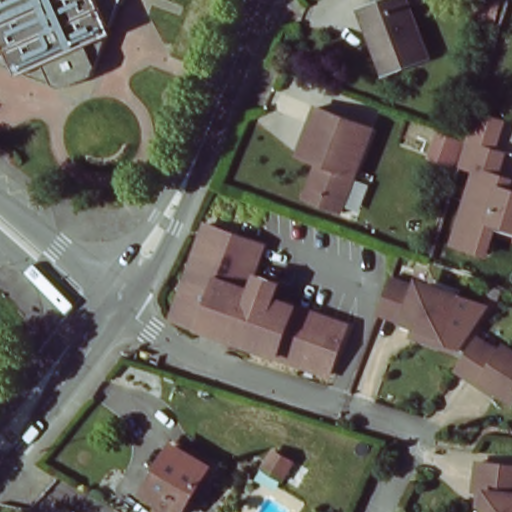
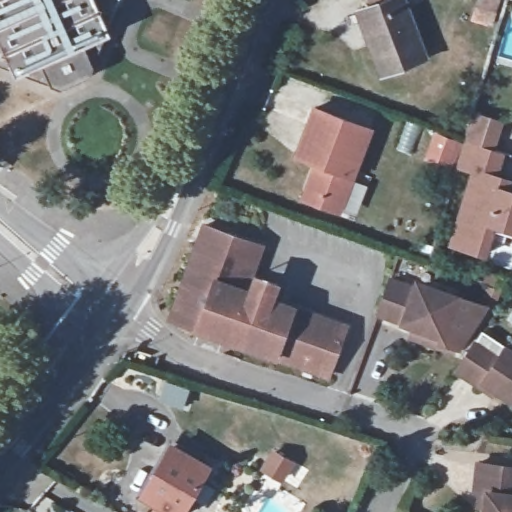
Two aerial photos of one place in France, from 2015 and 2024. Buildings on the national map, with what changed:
unchanged [(121,6),(117,4),(108,27),(111,34),(104,37),(91,76),(61,89),(22,74),(16,77),(13,70),(0,66),(0,0),(123,0),(121,6)]
unchanged [(358,11),(364,8),(370,6),(368,0),(402,0),(424,57),(383,73),(371,42),(370,42),(358,11)]
unchanged [(479,0),(500,0),(493,24),(474,18),(479,0)]
unchanged [(312,194),(322,167),(302,160),(307,146),(319,112),(376,133),(345,216),(327,210),(309,203),(312,194)]
unchanged [(501,171),(512,174),(512,233),(498,229),(490,258),(452,246),(471,172),(424,157),(435,129),(507,153),(501,171)]
unchanged [(194,324),(192,323),(191,323),(189,322),(188,321),(187,320),(186,320),(185,319),(184,318),(182,317),(181,316),(181,314),(180,313),(179,312),(178,311),(177,310),(177,308),(176,307),(176,305),(175,304),(175,303),(175,301),(174,300),(174,298),(174,297),(174,295),(174,294),(174,292),(175,291),(175,289),(175,288),(176,287),(200,220),(257,241),(241,285),(252,289),(255,279),(264,282),(261,292),(341,321),(324,371),(233,338),(194,324)]
unchanged [(410,282),(412,275),(454,290),(482,300),(455,343),(437,337),(439,332),(373,308),(382,283),(385,273),(410,282)]
unchanged [(451,365),(468,340),(473,333),(496,348),(501,340),(512,347),(512,395),(511,397),(491,384),(487,389),(474,380),(451,365)]
unchanged [(144,494),(172,446),(208,467),(183,512),(153,512),(159,503),(144,494)]
unchanged [(283,456),(300,466),(290,483),(273,473),(283,456)]
unchanged [(470,485),(473,456),(512,462),(512,512),(478,512),(480,500),(473,500),(475,486),(470,485)]

